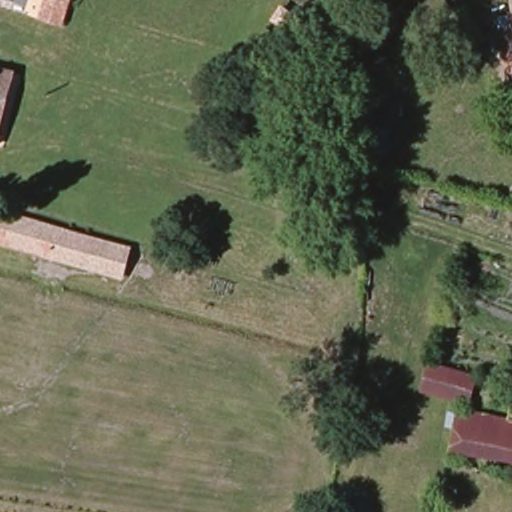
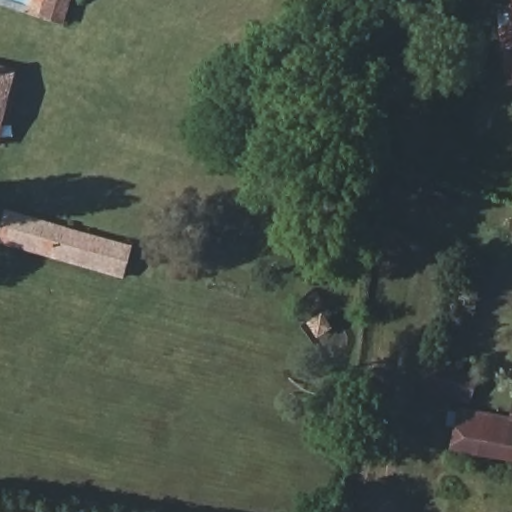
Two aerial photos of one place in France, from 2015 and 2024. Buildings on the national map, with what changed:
unchanged [(64,24),(38,17),(44,0),(71,0),(64,24)]
unchanged [(502,45),(501,27),(512,27),(512,45),(502,45)]
unchanged [(5,156),(0,155),(0,62),(29,68),(5,156)]
unchanged [(512,68),(512,83),(507,83),(506,68),(512,68)]
unchanged [(0,243),(5,214),(130,245),(119,282),(0,249),(0,243)]
unchanged [(437,381),(439,373),(427,369),(431,356),(434,357),(483,373),(480,393),(437,381)]
unchanged [(465,457),(478,401),(512,407),(512,467),(465,457)]

